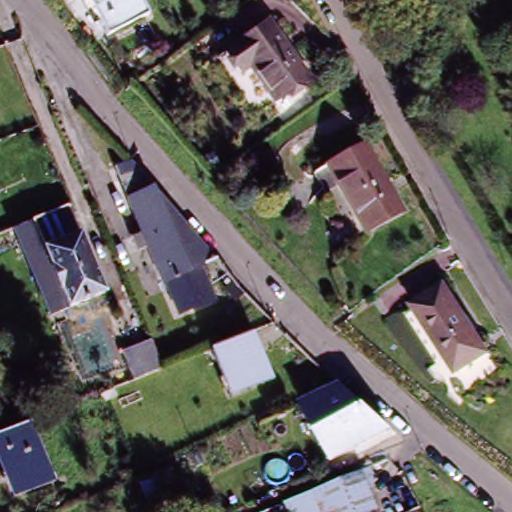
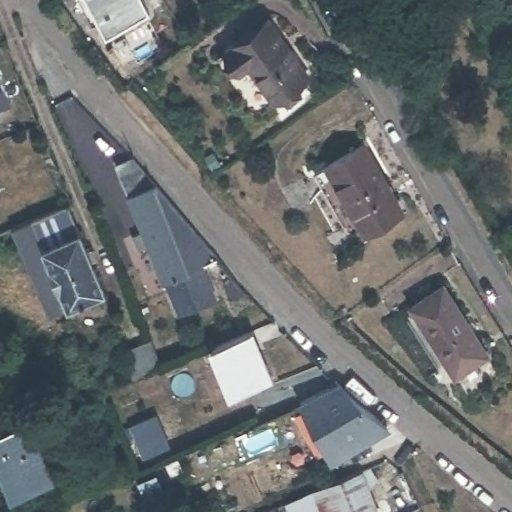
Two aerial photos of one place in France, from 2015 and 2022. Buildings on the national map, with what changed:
unchanged [(149,14),(106,34),(89,0),(142,0),(149,14)]
unchanged [(269,17),(310,74),(273,102),(243,62),(237,67),(225,51),(269,17)]
unchanged [(367,144),(403,211),(363,230),(340,189),(328,195),(315,172),(367,144)]
unchanged [(143,237),(152,234),(124,168),(141,160),(195,227),(223,262),(173,282),(158,247),(149,252),(143,237)]
unchanged [(106,296),(71,311),(47,253),(45,246),(80,232),(82,239),(106,296)]
unchanged [(448,292),(490,357),(457,378),(416,313),(448,292)]
unchanged [(237,342),(254,337),(272,384),(232,400),(212,353),(237,342)]
unchanged [(170,367),(141,378),(130,352),(157,339),(170,367)]
unchanged [(393,423),(335,452),(308,396),(343,376),(393,423)]
unchanged [(109,387),(114,399),(101,405),(96,392),(109,387)]
unchanged [(53,481),(16,495),(4,462),(0,464),(0,434),(31,421),(53,481)]
new [(157,421),(171,452),(145,462),(130,430),(157,421)]
unchanged [(368,471),(377,467),(382,480),(371,491),(379,511),(376,512),(290,512),(287,505),(307,496),(315,493),(358,475),(364,472),(368,471)]
unchanged [(159,496),(164,509),(156,512),(151,498),(159,496)]

